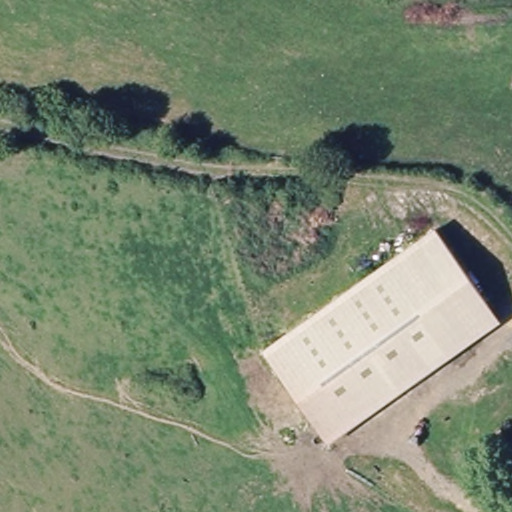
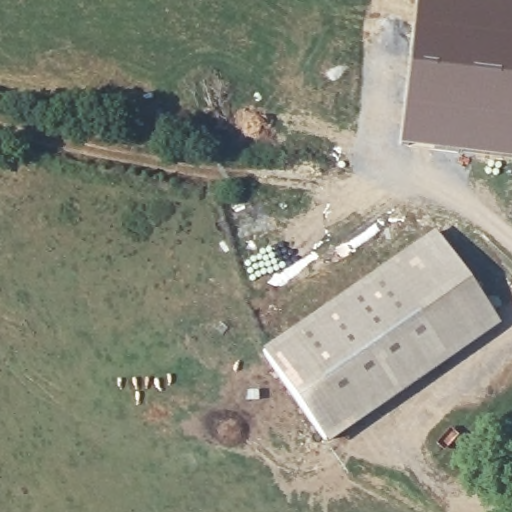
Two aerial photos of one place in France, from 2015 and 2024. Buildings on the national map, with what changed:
new [(416,0),(512,0),(512,160),(399,147),(416,0)]
unchanged [(260,352),(434,232),(500,325),(326,445),(260,352)]

